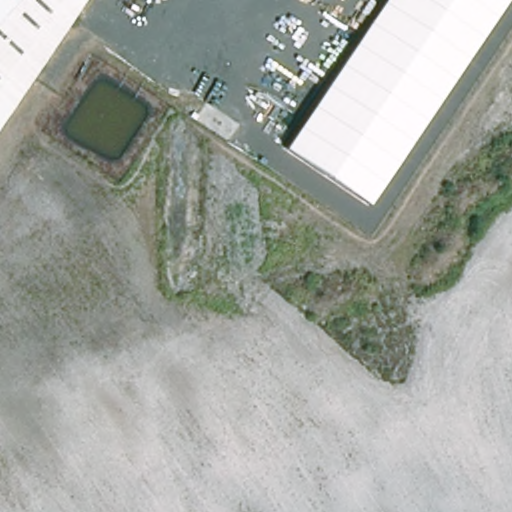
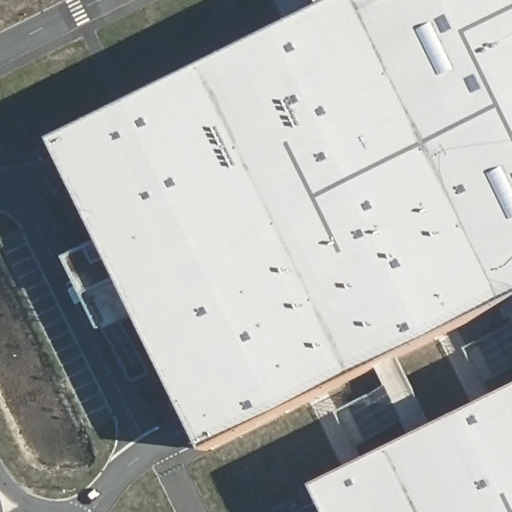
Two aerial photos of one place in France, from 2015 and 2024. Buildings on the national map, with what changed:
demolished [(0,122),(0,0),(68,0),(77,7),(0,122)]
new [(510,303),(212,450),(143,312),(107,329),(72,258),(109,240),(59,140),(341,0),(512,0),(512,308),(510,303)]
demolished [(82,0),(77,7),(68,0),(82,0)]
demolished [(285,146),(383,0),(504,0),(370,202),(285,146)]
new [(322,486),(512,392),(512,512),(334,512),(322,486)]

